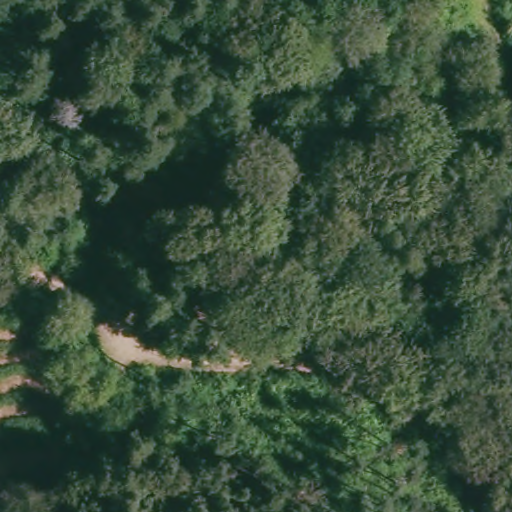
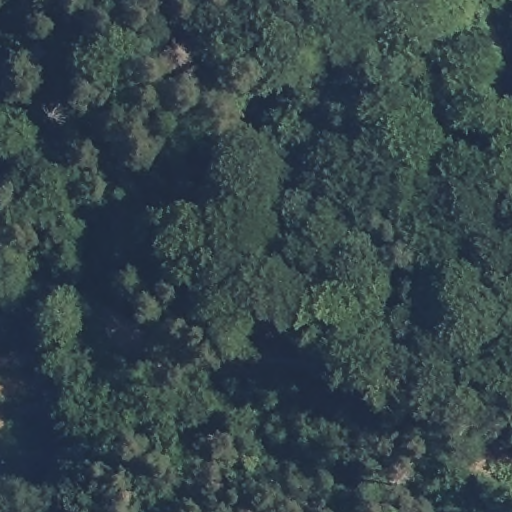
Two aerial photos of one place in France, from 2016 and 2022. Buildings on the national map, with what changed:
[]

